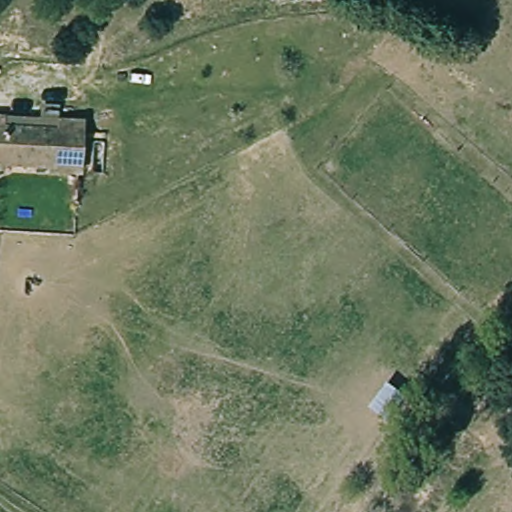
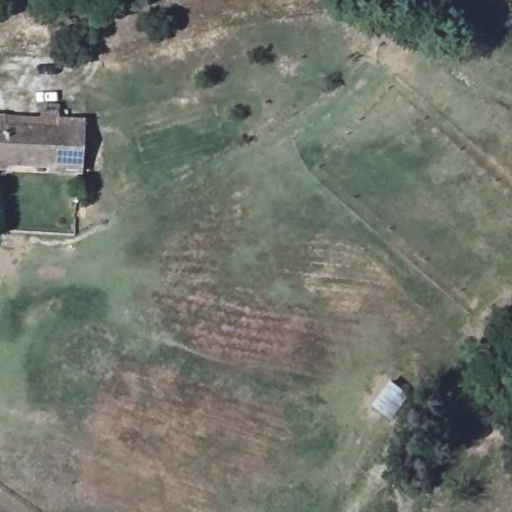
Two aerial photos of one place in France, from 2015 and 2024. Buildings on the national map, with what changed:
unchanged [(5,125),(53,128),(55,119),(78,121),(85,121),(81,174),(51,171),(51,163),(51,162),(3,158),(3,168),(0,168),(0,115),(6,115),(5,125)]

